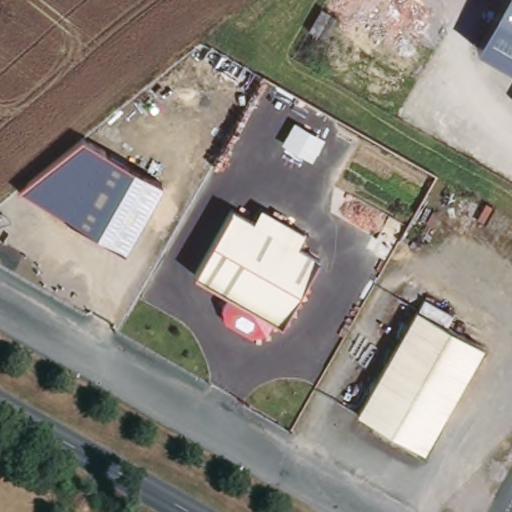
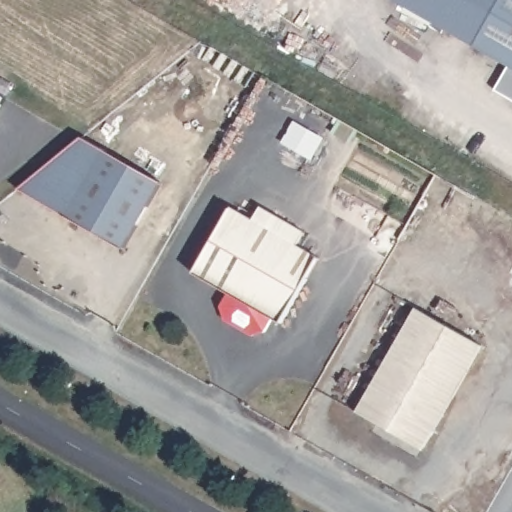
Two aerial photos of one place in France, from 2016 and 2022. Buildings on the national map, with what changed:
new [(396,2),(397,0),(504,0),(477,47),(396,2)]
unchanged [(477,47),(504,0),(512,0),(512,67),(477,47)]
unchanged [(83,137),(108,153),(162,184),(124,249),(69,218),(19,192),(83,137)]
unchanged [(276,325),(267,320),(260,333),(246,336),(220,321),(216,308),(223,295),(187,275),(225,210),(313,260),(276,325)]
unchanged [(357,410),(417,306),(482,344),(422,447),(357,410)]

